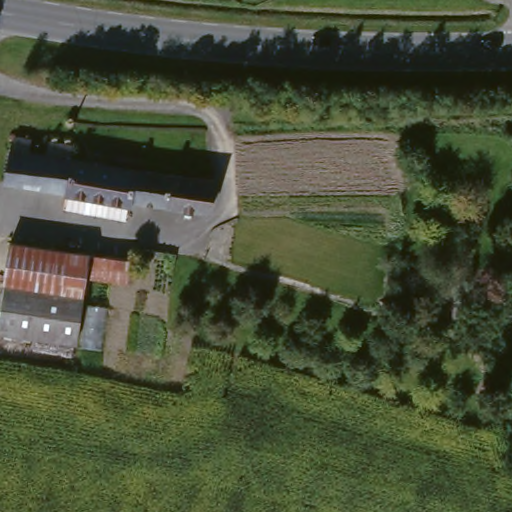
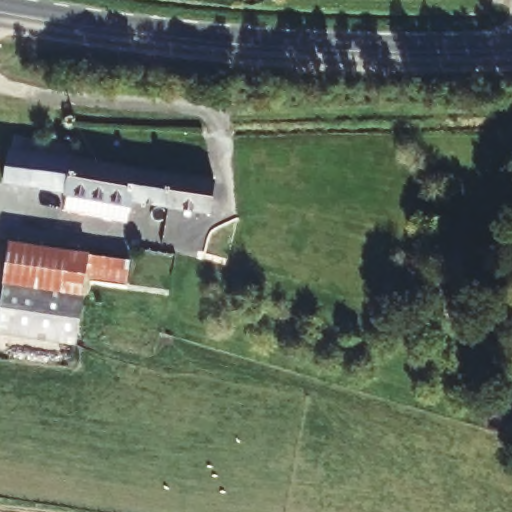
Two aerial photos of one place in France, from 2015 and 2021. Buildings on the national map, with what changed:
unchanged [(20,134),(38,136),(36,150),(55,153),(57,139),(82,144),(80,156),(72,194),(12,183),(20,134)]
unchanged [(75,212),(77,195),(72,194),(80,156),(145,167),(138,202),(137,205),(132,204),(129,220),(75,212)]
unchanged [(179,173),(174,207),(138,202),(145,167),(179,173)]
unchanged [(221,180),(216,213),(174,207),(179,173),(221,180)]
unchanged [(56,250),(130,260),(127,284),(90,279),(87,294),(9,283),(16,244),(56,250)]
unchanged [(421,299),(391,300),(391,281),(422,280),(421,299)]
unchanged [(87,294),(79,344),(1,333),(9,283),(87,294)]

